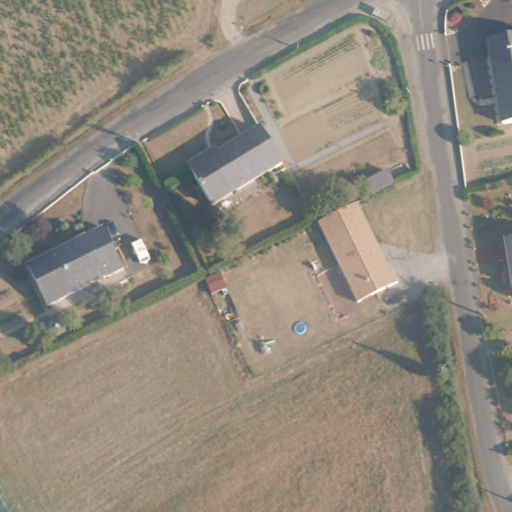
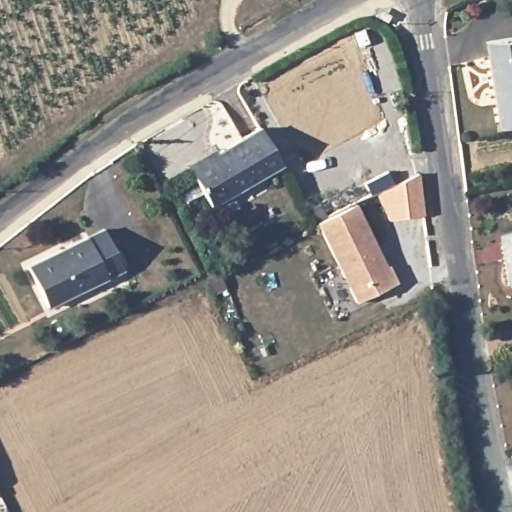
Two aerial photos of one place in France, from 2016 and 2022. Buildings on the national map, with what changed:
unchanged [(512,119),(498,121),(485,38),(512,33),(512,119)]
unchanged [(259,125),(278,160),(205,202),(187,165),(259,125)]
new [(376,192),(418,174),(423,215),(389,220),(376,192)]
unchanged [(386,267),(390,265),(398,284),(355,307),(315,223),(358,203),(386,267)]
unchanged [(105,221),(123,260),(46,298),(28,257),(105,221)]
unchanged [(495,242),(512,240),(512,289),(503,290),(495,242)]

